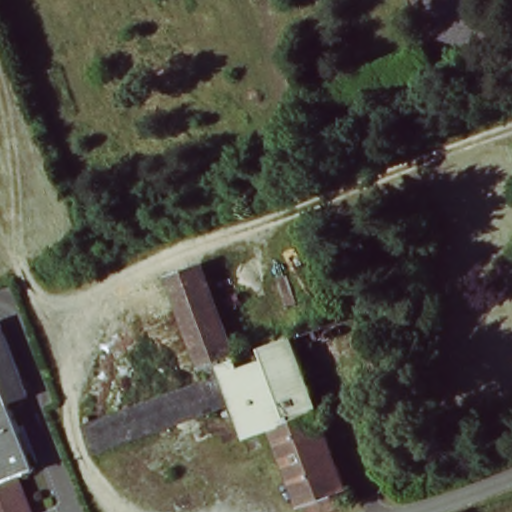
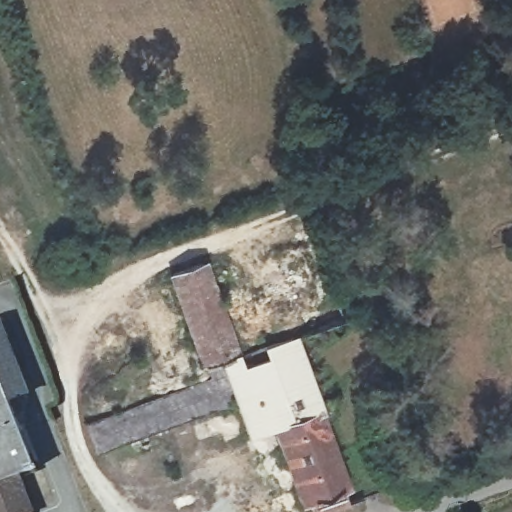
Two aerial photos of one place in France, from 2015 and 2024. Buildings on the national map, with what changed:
unchanged [(76,250),(100,242),(105,260),(82,268),(76,250)]
unchanged [(221,372),(207,377),(167,276),(203,262),(239,355),(293,336),(298,349),(308,377),(315,397),(326,393),(332,407),(320,412),(348,482),(336,487),(345,507),(333,512),(312,512),(306,498),(300,502),(269,425),(246,435),(233,401),(221,372)]
unchanged [(25,393),(8,399),(17,422),(10,425),(15,437),(0,443),(0,325),(25,393)]
unchanged [(342,330),(354,358),(308,377),(298,349),(342,330)]
unchanged [(221,372),(233,401),(93,454),(83,426),(207,377),(221,372)]
unchanged [(15,437),(28,470),(17,475),(31,512),(0,512),(0,443),(15,437)]

